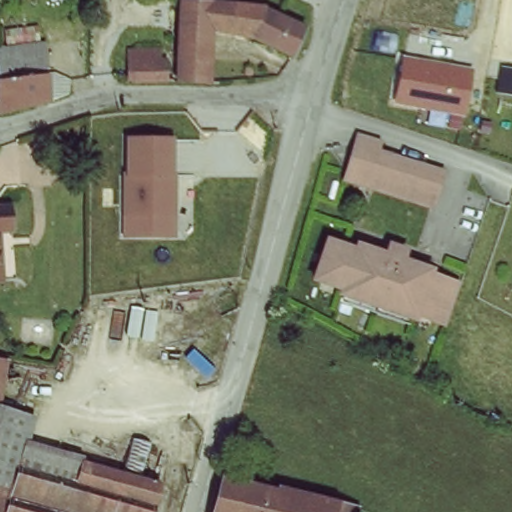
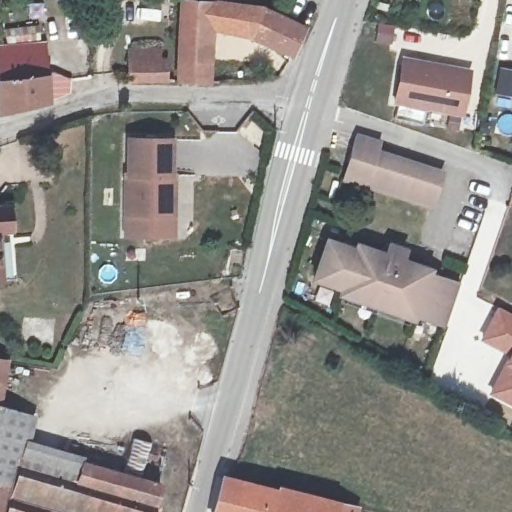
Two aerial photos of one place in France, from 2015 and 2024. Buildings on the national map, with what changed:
unchanged [(253,39),(235,32),(211,29),(211,85),(180,83),(184,5),(262,7),(305,27),(301,51),(297,60),(253,39)]
unchanged [(42,104),(0,110),(0,82),(10,82),(8,51),(37,49),(40,75),(68,81),(72,96),(42,104)]
unchanged [(129,81),(129,52),(159,52),(160,62),(166,63),(165,82),(129,81)]
unchanged [(473,70),(463,119),(392,107),(402,57),(473,70)]
unchanged [(173,217),(124,216),(126,138),(175,139),(173,217)]
unchanged [(357,142),(383,152),(380,160),(440,180),(431,210),(344,180),(351,161),(357,142)]
unchanged [(11,212),(11,280),(0,280),(0,212),(11,212)]
unchanged [(173,240),(124,240),(124,216),(173,217),(173,240)]
unchanged [(424,275),(456,286),(447,312),(442,326),(428,321),(423,326),(350,301),(352,294),(323,283),(337,245),(364,254),(366,252),(382,257),(387,242),(403,249),(399,260),(426,269),(424,275)]
new [(512,313),(512,407),(487,394),(506,355),(479,340),(497,305),(512,313)]
unchanged [(5,366),(6,370),(0,390),(0,364),(5,366)]
unchanged [(18,464),(48,473),(53,455),(162,487),(154,512),(0,512),(0,410),(26,418),(29,424),(18,464)]
unchanged [(350,504),(347,512),(208,512),(219,473),(350,504)]

